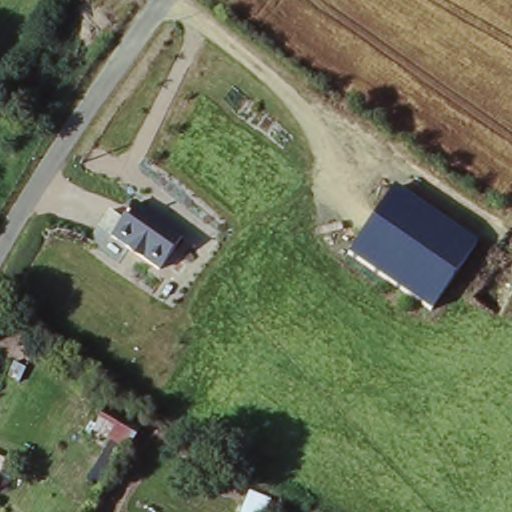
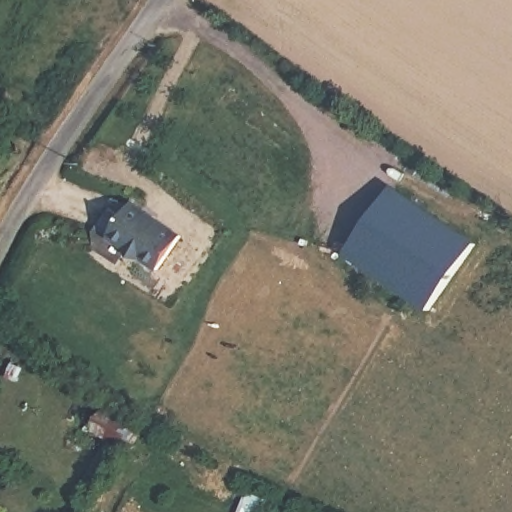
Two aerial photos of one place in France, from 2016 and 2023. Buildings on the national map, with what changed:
unchanged [(391,186),(476,244),(430,315),(345,257),(391,186)]
unchanged [(182,236),(159,271),(110,240),(136,205),(182,236)]
unchanged [(128,449),(93,428),(107,405),(141,426),(128,449)]

